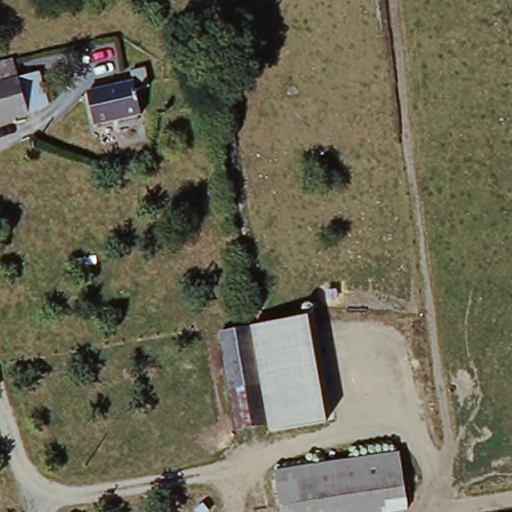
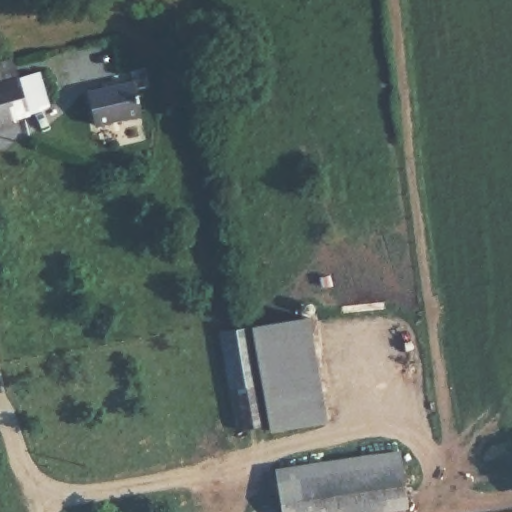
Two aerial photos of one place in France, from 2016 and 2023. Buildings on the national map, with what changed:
unchanged [(37,87),(55,81),(64,114),(47,119),(0,130),(0,74),(32,66),(37,87)]
unchanged [(120,89),(119,79),(145,70),(150,87),(134,93),(141,119),(100,130),(90,98),(120,89)]
unchanged [(325,416),(270,427),(269,421),(238,427),(221,331),(308,313),(325,416)]
unchanged [(277,463),(399,447),(407,510),(387,512),(284,512),(277,463)]

